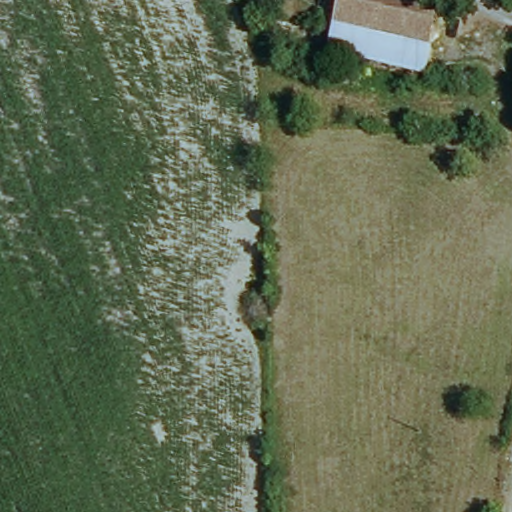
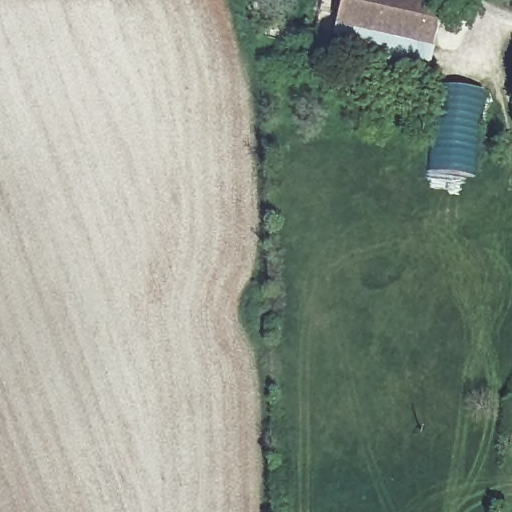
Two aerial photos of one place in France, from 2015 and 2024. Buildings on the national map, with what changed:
unchanged [(425,77),(329,55),(342,0),(439,0),(446,1),(425,77)]
new [(488,93),(475,178),(433,175),(443,85),(488,93)]

